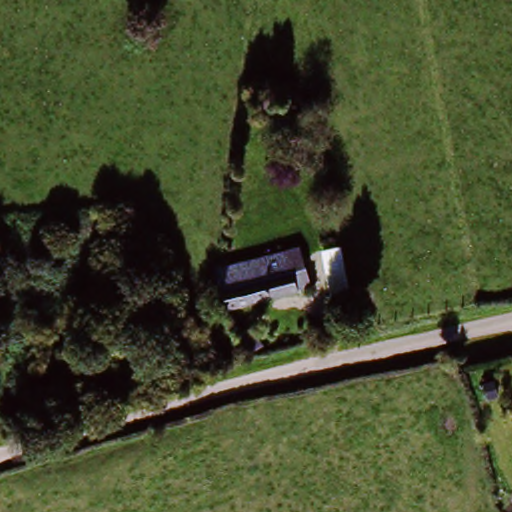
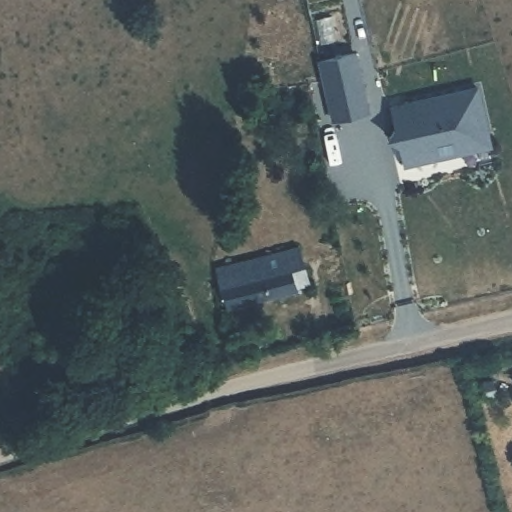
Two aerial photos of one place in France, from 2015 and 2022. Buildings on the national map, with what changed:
new [(371,113),(330,122),(317,60),(356,50),(371,113)]
new [(479,84),(494,147),(406,167),(401,147),(387,137),(395,126),(389,107),(479,84)]
new [(344,251),(353,296),(328,301),(319,256),(344,251)]
unchanged [(227,311),(222,291),(224,268),(280,257),(283,269),(294,267),(301,293),(227,311)]

